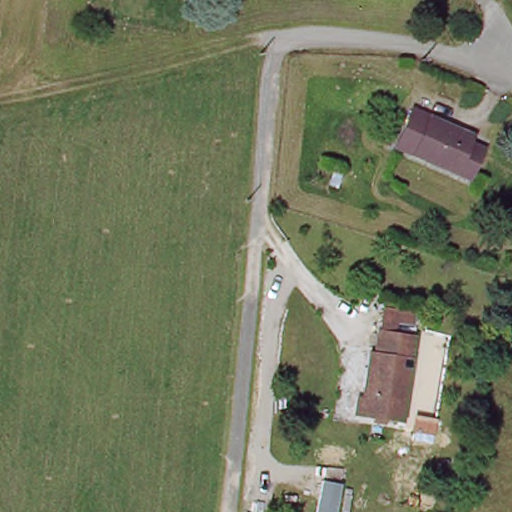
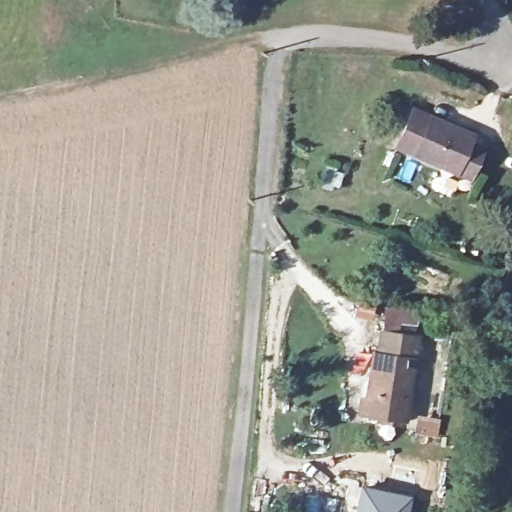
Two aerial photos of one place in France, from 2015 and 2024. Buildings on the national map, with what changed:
unchanged [(473,133),(469,140),(483,146),(469,176),(424,155),(398,144),(414,108),(473,133)]
unchanged [(373,354),(379,355),(382,332),(384,332),(387,309),(418,314),(417,324),(401,322),(400,334),(420,337),(407,426),(365,420),(358,419),(361,397),(368,398),(373,354)]
new [(360,486),(410,497),(407,512),(354,512),(360,486)]

